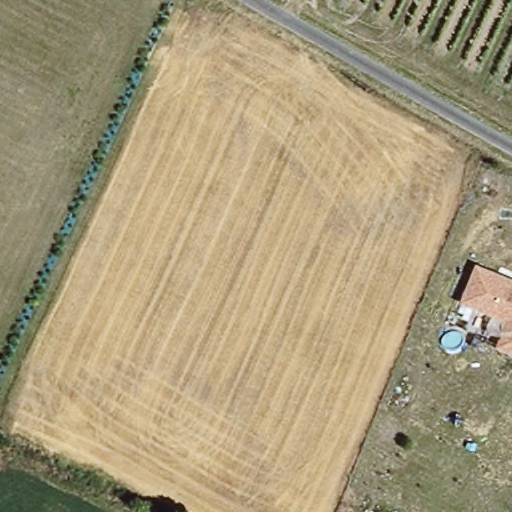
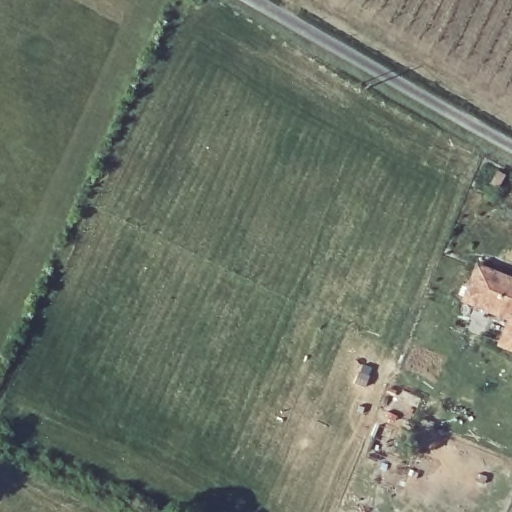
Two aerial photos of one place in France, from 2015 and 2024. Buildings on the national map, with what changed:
unchanged [(496,349),(507,323),(462,304),(476,264),(512,278),(512,356),(496,349)]

